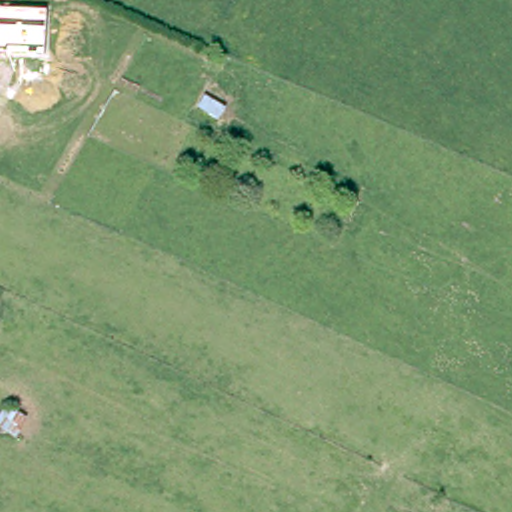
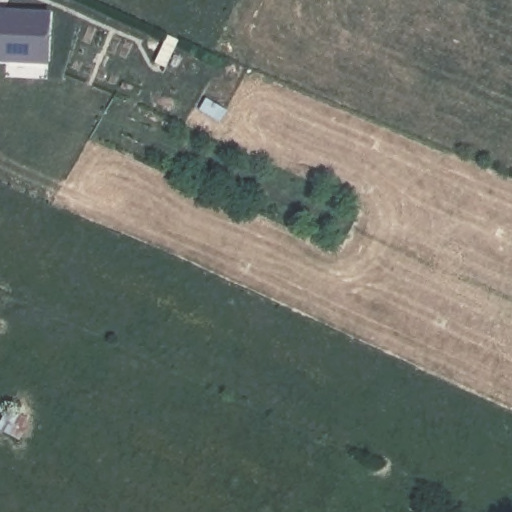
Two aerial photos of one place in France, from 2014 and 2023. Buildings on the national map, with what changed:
new [(51,8),(50,62),(0,61),(0,7),(51,8)]
unchanged [(20,434),(0,426),(0,407),(3,399),(30,413),(20,434)]

